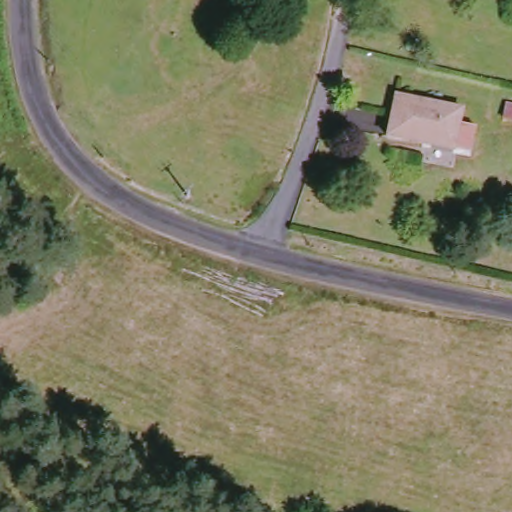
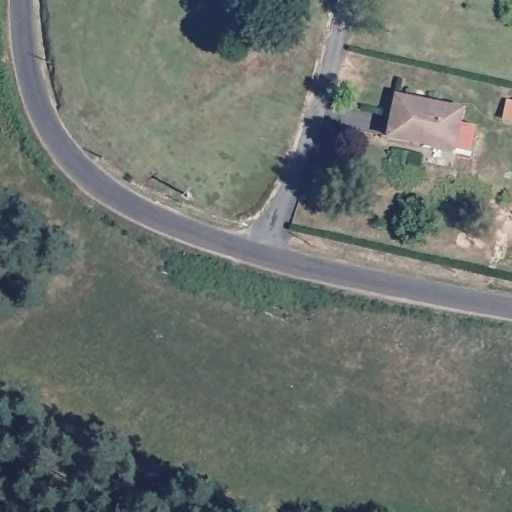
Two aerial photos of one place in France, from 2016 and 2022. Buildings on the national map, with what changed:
unchanged [(457,112),(450,152),(384,141),(390,101),(457,112)]
unchanged [(512,107),(512,121),(495,119),(497,105),(512,107)]

